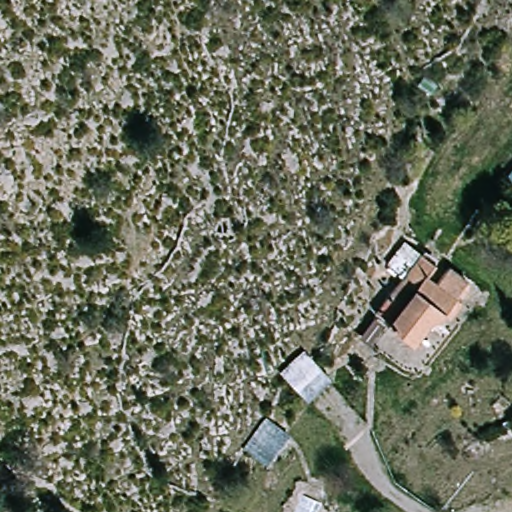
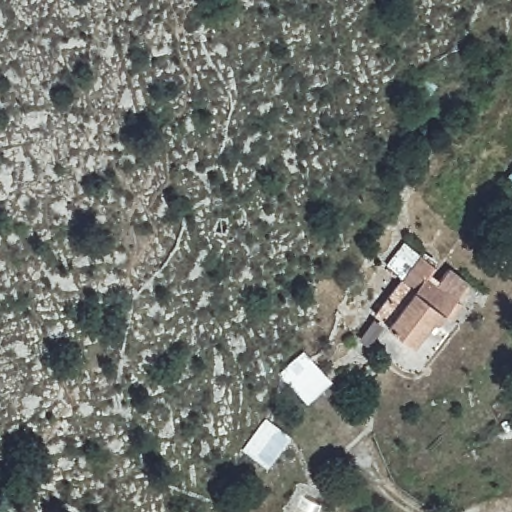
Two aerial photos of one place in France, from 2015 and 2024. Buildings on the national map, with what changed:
unchanged [(512,171),(512,180),(508,175),(512,171)]
unchanged [(400,275),(389,265),(407,242),(437,262),(432,271),(440,275),(452,263),(473,285),(452,314),(438,310),(418,339),(379,308),(400,275)]
unchanged [(312,353),(332,380),(306,398),(287,370),(312,353)]

